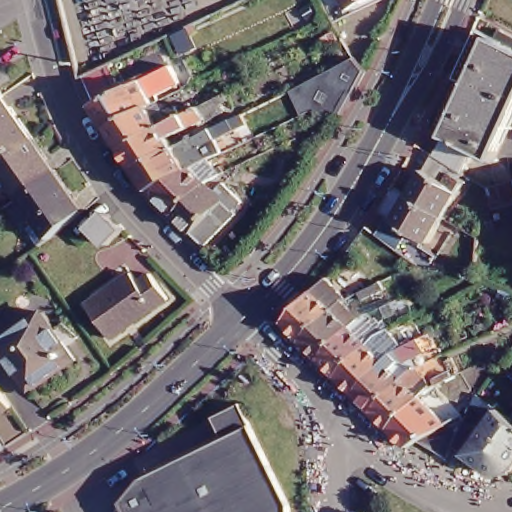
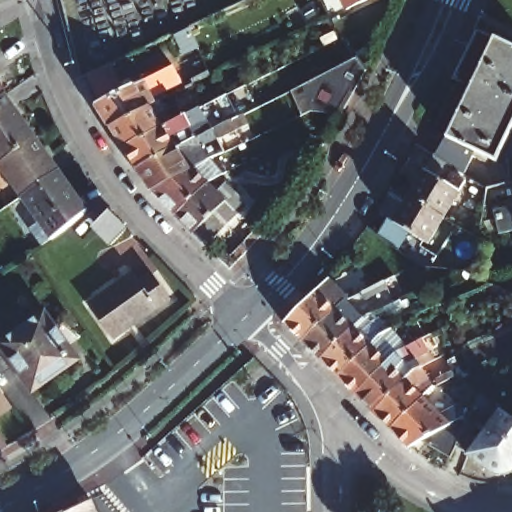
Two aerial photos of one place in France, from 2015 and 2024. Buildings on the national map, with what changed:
unchanged [(353,10),(349,0),(373,0),(353,10)]
unchanged [(477,25),(497,35),(500,29),(512,35),(512,123),(494,158),(474,148),(463,171),(454,165),(434,153),(470,84),(452,75),(477,25)]
unchanged [(311,106),(301,111),(290,87),(354,55),(365,67),(342,109),(311,106)]
unchanged [(184,77),(153,92),(155,97),(153,98),(104,123),(90,101),(91,100),(79,74),(105,61),(114,80),(124,76),(128,83),(176,60),(184,77)]
unchanged [(0,88),(29,130),(0,150),(0,88)]
unchanged [(187,108),(221,90),(223,96),(215,100),(218,107),(208,113),(211,117),(203,121),(201,116),(168,131),(176,142),(131,165),(118,144),(187,108)]
unchanged [(153,98),(161,109),(173,102),(176,107),(184,103),(187,108),(118,144),(104,123),(153,98)]
unchanged [(176,142),(224,118),(231,130),(208,142),(214,152),(203,155),(202,155),(145,187),(131,165),(176,142)]
unchanged [(0,166),(0,150),(29,130),(52,162),(15,188),(0,166)]
unchanged [(454,165),(452,170),(464,178),(443,214),(408,193),(433,153),(434,153),(454,165)]
unchanged [(202,155),(203,155),(213,167),(218,165),(221,169),(201,180),(169,211),(145,188),(145,187),(202,155)]
unchanged [(79,202),(63,218),(34,237),(22,220),(32,212),(15,188),(52,162),(79,202)]
unchanged [(201,180),(211,189),(221,181),(239,199),(229,207),(233,211),(201,242),(169,211),(201,180)]
unchanged [(512,188),(512,208),(487,214),(489,193),(512,188)]
unchanged [(386,214),(393,218),(408,193),(443,214),(426,240),(408,228),(396,247),(375,232),(386,214)]
demolished [(113,215),(130,231),(115,246),(98,230),(113,215)]
unchanged [(133,274),(139,284),(152,275),(169,300),(111,340),(88,306),(133,274)]
unchanged [(278,324),(309,292),(311,293),(313,291),(323,280),(344,299),(339,301),(338,302),(314,325),(296,343),(278,324)]
unchanged [(388,284),(391,291),(369,301),(366,294),(388,284)]
unchanged [(296,343),(314,325),(338,302),(356,320),(314,361),(296,343)]
unchanged [(67,356),(21,388),(0,358),(0,332),(34,308),(67,356)]
unchanged [(314,361),(356,320),(373,337),(332,378),(314,361)]
unchanged [(332,378),(373,337),(384,332),(398,351),(390,355),(349,395),(332,378)]
unchanged [(349,395),(390,355),(398,351),(418,341),(424,355),(399,367),(392,373),(399,380),(367,413),(349,395)]
unchanged [(367,413),(399,380),(407,372),(416,368),(422,379),(419,383),(423,386),(429,382),(427,377),(438,372),(444,381),(426,390),(417,398),(385,431),(367,413)]
unchanged [(0,406),(0,380),(13,398),(0,406)]
demolished [(148,498),(136,472),(228,428),(218,407),(238,396),(288,496),(288,512),(125,512),(123,510),(148,498)]
unchanged [(496,412),(503,417),(506,419),(512,424),(512,467),(510,469),(507,471),(504,472),(499,473),(495,474),(491,474),(486,473),(483,472),(453,450),(449,448),(444,460),(415,442),(404,449),(385,431),(417,398),(438,419),(449,412),(449,414),(454,412),(459,418),(458,419),(463,423),(479,434),(496,412)]
unchanged [(506,419),(512,411),(512,424),(506,419)]
new [(99,512),(92,512),(98,510),(99,512)]

